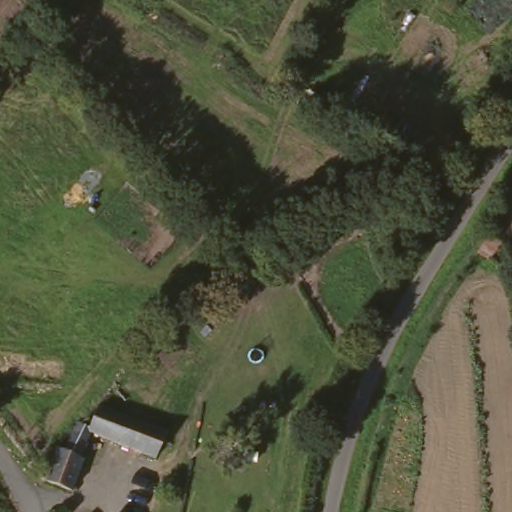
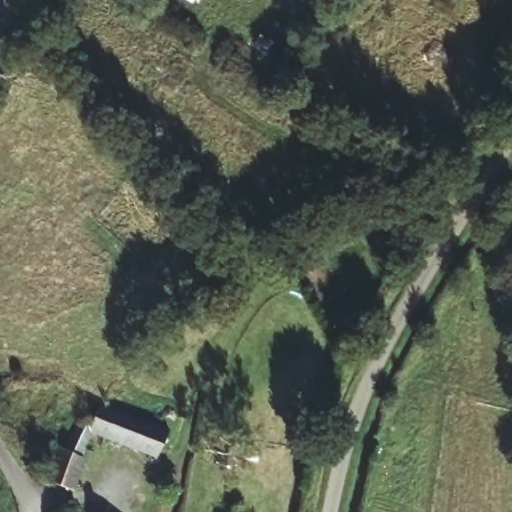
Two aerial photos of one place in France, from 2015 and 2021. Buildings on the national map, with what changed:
unchanged [(49,457),(58,460),(72,425),(83,429),(89,413),(94,400),(159,421),(147,452),(89,433),(68,492),(52,485),(41,481),(49,457)]

